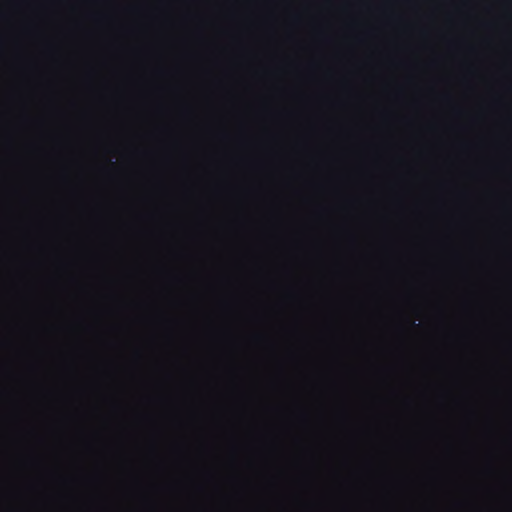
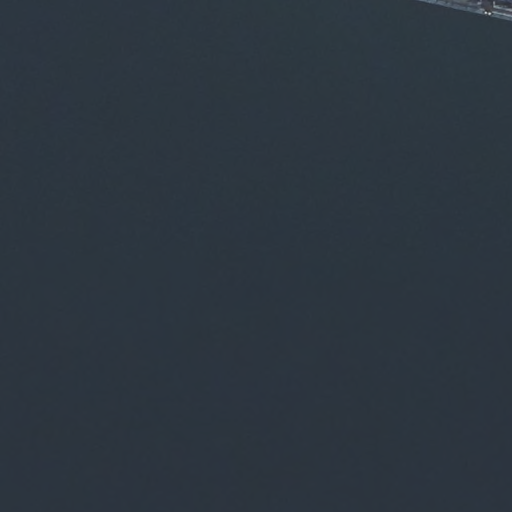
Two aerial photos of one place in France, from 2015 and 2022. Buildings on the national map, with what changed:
[]

